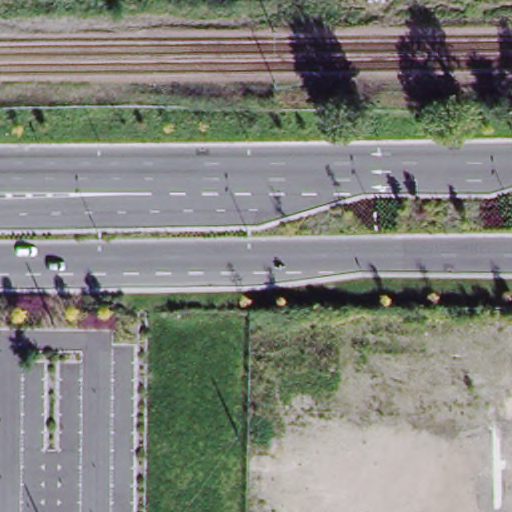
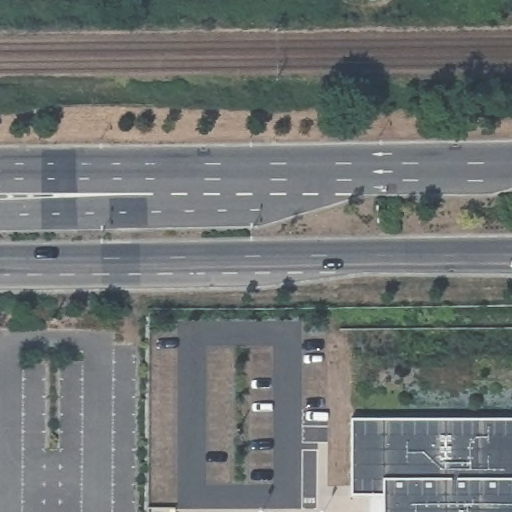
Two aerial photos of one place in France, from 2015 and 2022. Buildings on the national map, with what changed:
new [(382,495),(351,494),(350,422),(512,422),(512,512),(382,512),(382,495)]

